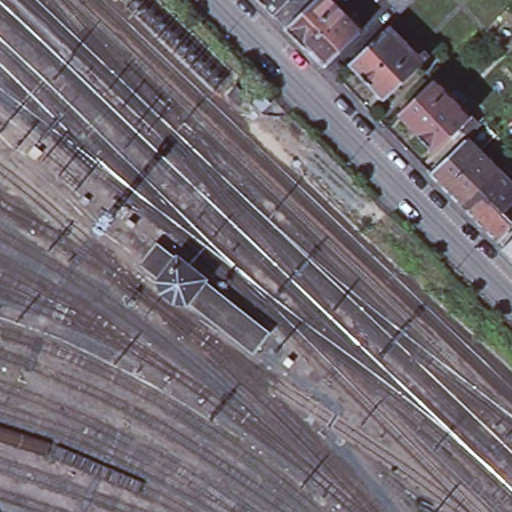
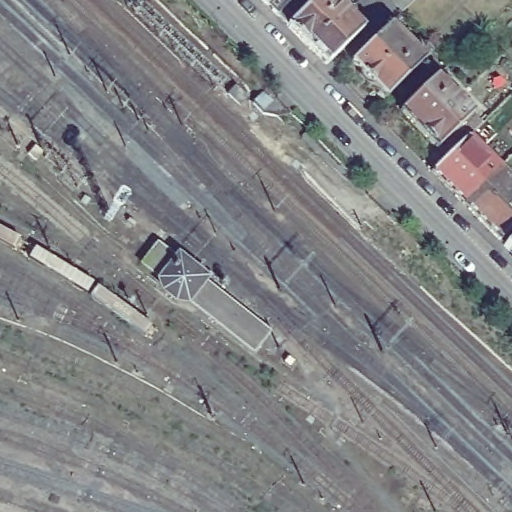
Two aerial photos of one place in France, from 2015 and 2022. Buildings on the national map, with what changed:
unchanged [(272,15),(258,0),(329,0),(357,28),(322,63),(302,44),(302,45),(282,25),(272,15)]
unchanged [(403,11),(392,0),(415,0),(403,11)]
unchanged [(414,55),(418,50),(424,56),(381,97),(346,61),(385,24),(414,55)]
unchanged [(395,112),(431,77),(468,114),(477,122),(463,137),(454,127),(432,149),(395,112)]
unchanged [(358,190),(359,198),(348,210),(341,210),(280,153),(280,144),(292,133),(299,132),(358,190)]
unchanged [(463,137),(495,169),(459,204),(427,172),(463,137)]
unchanged [(495,169),(512,186),(512,201),(502,210),(512,220),(512,224),(495,241),(459,204),(495,169)]
unchanged [(512,233),(512,257),(500,245),(512,233)]
unchanged [(267,331),(255,354),(134,263),(152,245),(267,331)]

